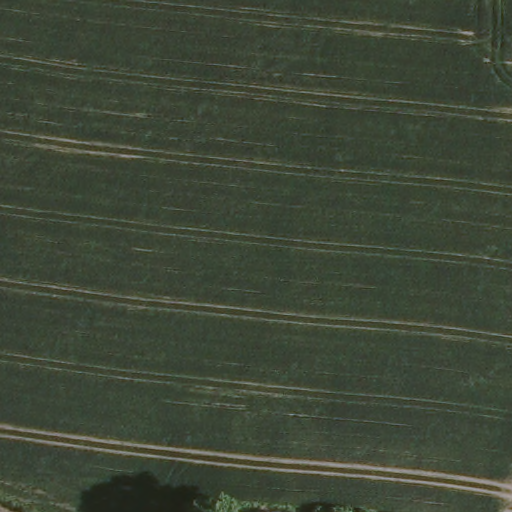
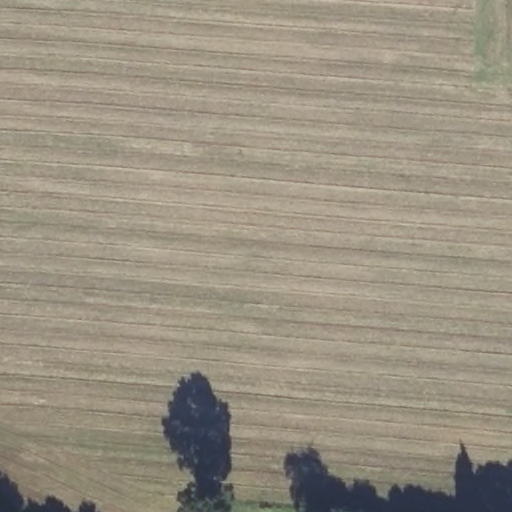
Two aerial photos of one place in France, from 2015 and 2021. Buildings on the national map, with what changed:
[]

